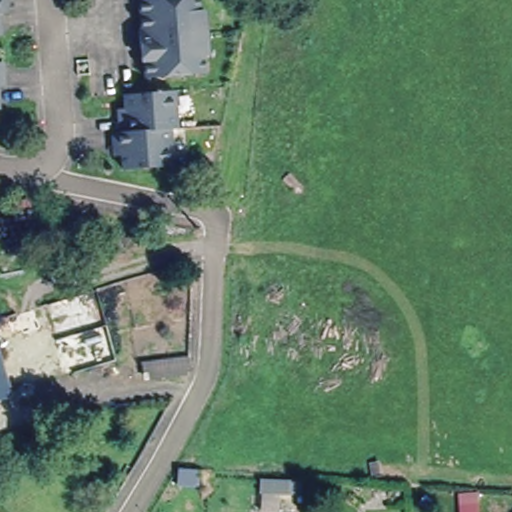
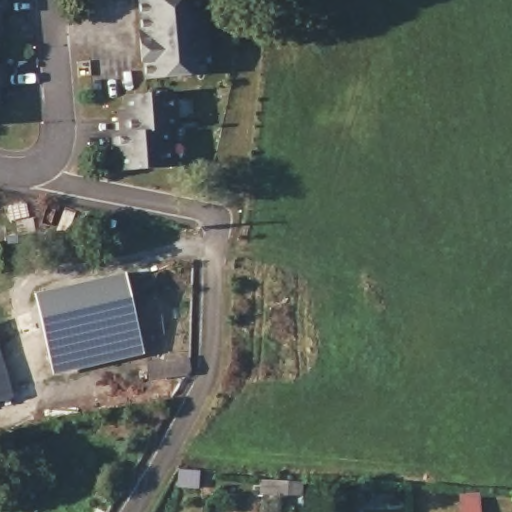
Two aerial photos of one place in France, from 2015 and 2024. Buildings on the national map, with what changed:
unchanged [(9,12),(0,12),(0,0),(8,0),(9,12)]
unchanged [(195,7),(200,7),(204,50),(200,51),(200,70),(141,74),(140,56),(137,56),(135,25),(138,25),(135,0),(195,0),(195,7)]
unchanged [(2,61),(3,70),(4,84),(0,84),(0,62),(2,61)]
unchanged [(115,150),(114,135),(120,135),(119,120),(119,112),(127,112),(125,95),(177,92),(180,128),(173,129),(176,168),(124,172),(123,157),(116,157),(115,150)]
new [(125,270),(143,353),(52,373),(33,292),(125,270)]
unchanged [(192,368),(189,375),(145,380),(142,364),(192,357),(192,368)]
unchanged [(11,400),(0,402),(0,365),(11,400)]
unchanged [(463,512),(462,494),(477,493),(478,512),(463,512)]

